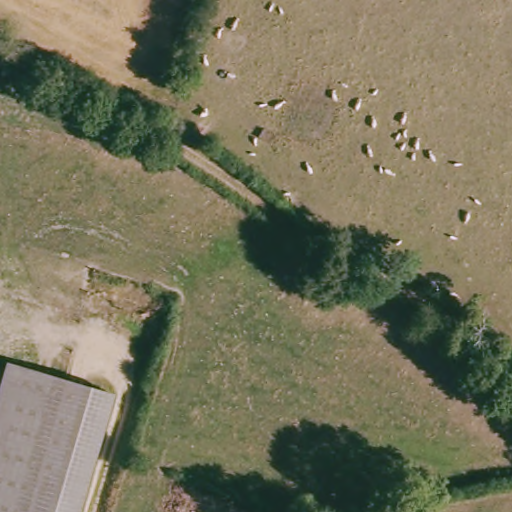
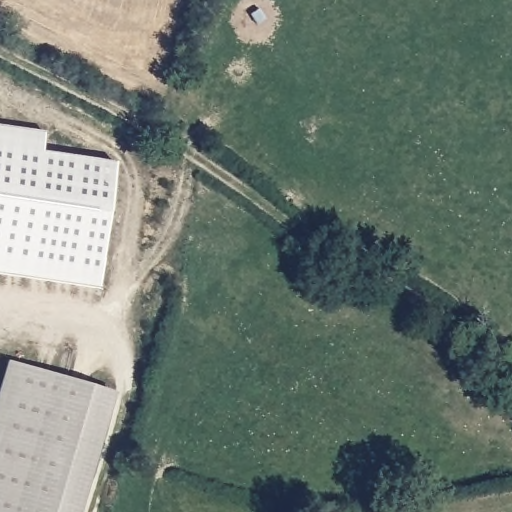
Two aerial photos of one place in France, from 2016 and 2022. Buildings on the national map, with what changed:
new [(42,134),(40,153),(115,163),(100,287),(0,274),(0,128),(42,134)]
unchanged [(3,366),(121,397),(105,454),(84,447),(17,423),(0,418),(0,379),(3,366)]
unchanged [(87,512),(0,512),(0,418),(17,423),(84,447),(105,454),(87,512)]

